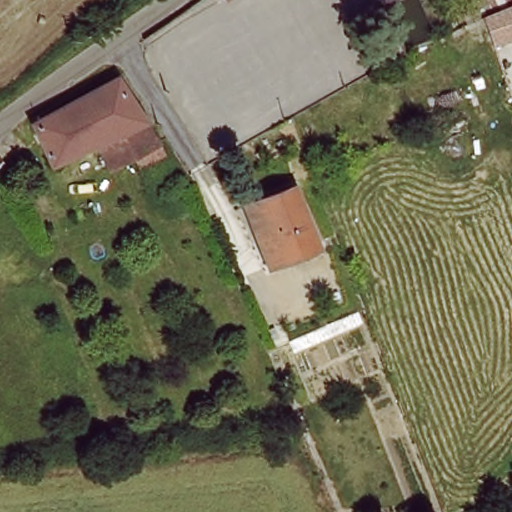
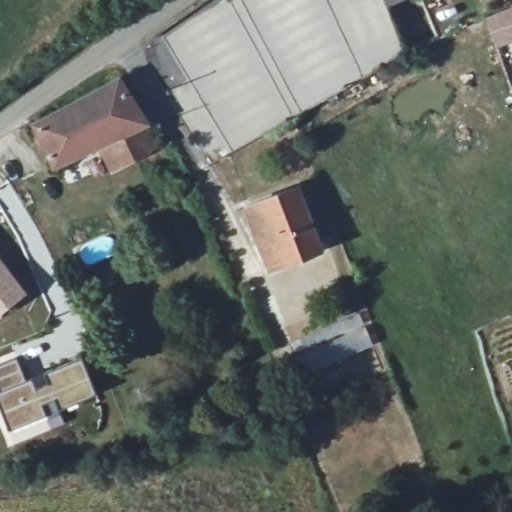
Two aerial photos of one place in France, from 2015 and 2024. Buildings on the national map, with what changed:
new [(228,0),(233,0),(229,3),(228,0)]
unchanged [(387,0),(396,0),(389,3),(387,0)]
demolished [(499,28),(492,11),(512,3),(512,22),(499,28)]
new [(497,48),(485,18),(512,7),(512,43),(497,48)]
unchanged [(147,161),(139,148),(114,161),(102,136),(56,156),(38,115),(120,70),(169,149),(147,161)]
unchanged [(250,198),(299,180),(324,247),(274,265),(250,198)]
new [(0,314),(0,259),(26,293),(0,314)]
new [(24,382),(29,380),(32,391),(49,385),(45,374),(80,360),(93,394),(58,409),(54,398),(41,405),(45,416),(9,431),(0,409),(0,364),(15,359),(24,382)]

